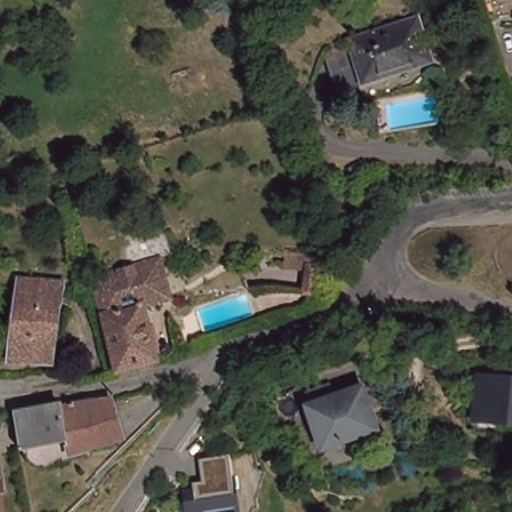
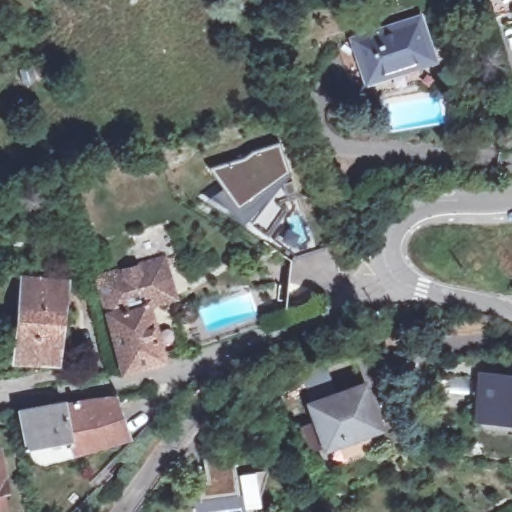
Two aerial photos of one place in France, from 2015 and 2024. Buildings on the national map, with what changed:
unchanged [(349,36),(412,16),(425,59),(364,80),(349,36)]
new [(280,140),(291,172),(272,186),(238,207),(221,185),(210,168),(280,140)]
new [(221,185),(238,207),(272,186),(276,191),(255,221),(250,217),(245,224),(207,200),(221,185)]
unchanged [(145,354),(110,367),(86,311),(89,310),(73,269),(111,257),(99,227),(141,211),(154,246),(140,251),(153,289),(124,298),(145,354)]
unchanged [(73,298),(70,331),(56,329),(55,360),(5,357),(5,336),(14,336),(20,274),(68,278),(65,298),(73,298)]
unchanged [(488,372),(512,375),(512,413),(485,410),(488,372)]
unchanged [(363,381),(378,422),(325,441),(310,400),(363,381)]
unchanged [(63,450),(64,455),(43,462),(36,462),(31,459),(26,455),(22,448),(16,407),(56,399),(60,403),(111,391),(121,437),(63,450)]
unchanged [(198,502),(195,485),(205,483),(202,461),(230,457),(234,479),(254,476),(260,511),(250,512),(193,512),(192,503),(198,502)]
unchanged [(5,490),(0,491),(0,463),(5,490)]
unchanged [(1,506),(0,506),(0,501),(1,506)]

